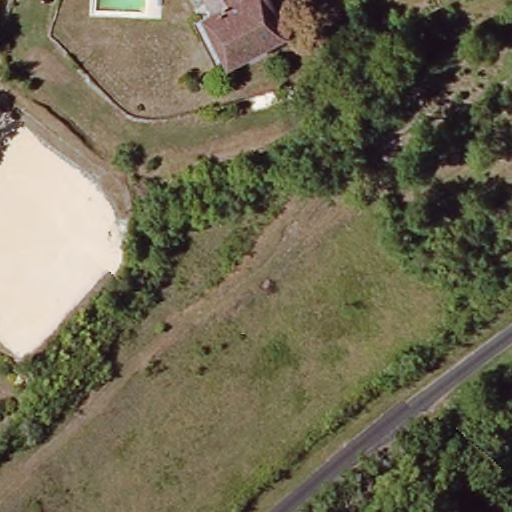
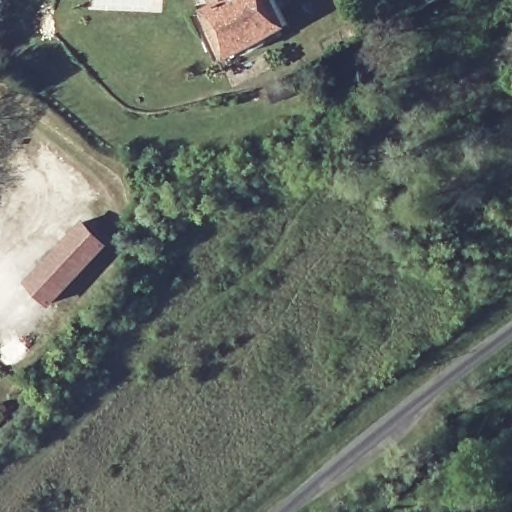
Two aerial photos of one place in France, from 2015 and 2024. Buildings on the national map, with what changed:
unchanged [(297,20),(239,53),(211,5),(220,0),(285,0),(297,20)]
new [(84,218),(110,244),(51,306),(26,280),(84,218)]

